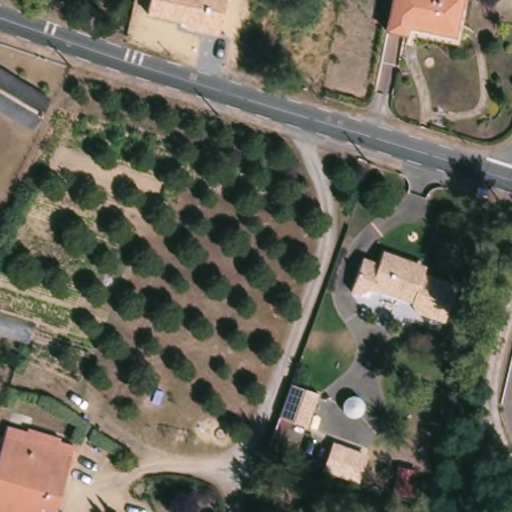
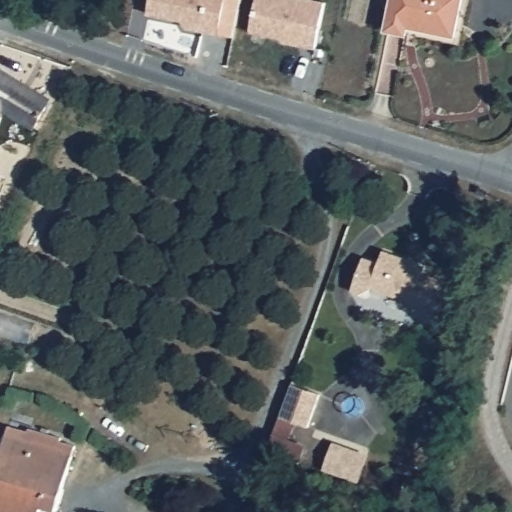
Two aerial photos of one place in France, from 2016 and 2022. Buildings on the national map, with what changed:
unchanged [(225,0),(217,36),(182,30),(184,21),(147,16),(150,0),(225,0)]
new [(310,0),(325,3),(315,49),(282,42),(282,39),(250,33),(256,0),(310,0)]
unchanged [(407,30),(406,38),(387,34),(395,0),(462,0),(455,40),(407,30)]
unchanged [(34,131),(0,110),(0,75),(49,104),(34,131)]
unchanged [(365,261),(380,266),(385,253),(420,266),(425,276),(459,288),(446,324),(418,314),(414,305),(372,291),(369,300),(353,294),(360,275),(365,261)]
unchanged [(322,393),(310,426),(282,416),(292,388),(293,383),(322,393)]
unchanged [(63,446),(77,450),(59,512),(0,512),(0,465),(8,439),(11,428),(30,433),(64,443),(63,446)]
unchanged [(337,443),(370,455),(360,483),(326,471),(337,443)]
unchanged [(404,470),(423,477),(414,503),(403,499),(395,496),(404,470)]

